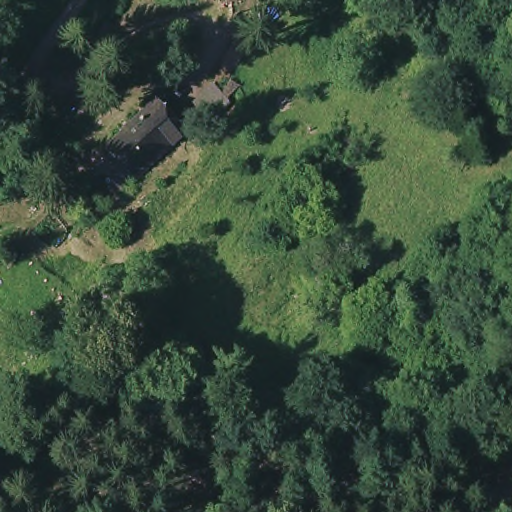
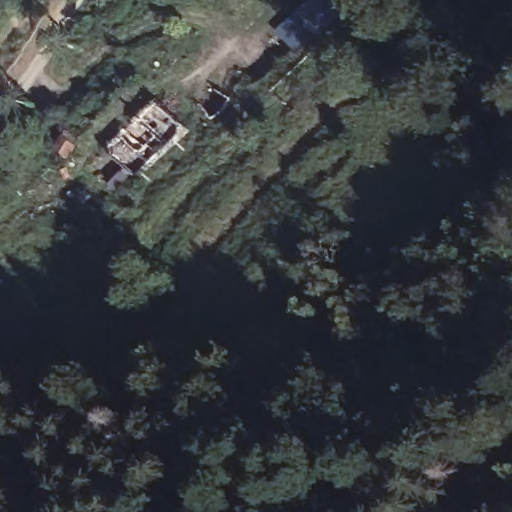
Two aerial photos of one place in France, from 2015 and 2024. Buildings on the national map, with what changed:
unchanged [(116,139),(133,124),(172,89),(198,122),(161,155),(145,170),(116,139)]

